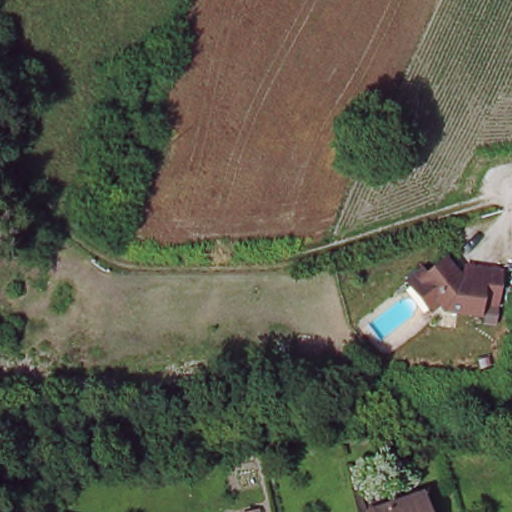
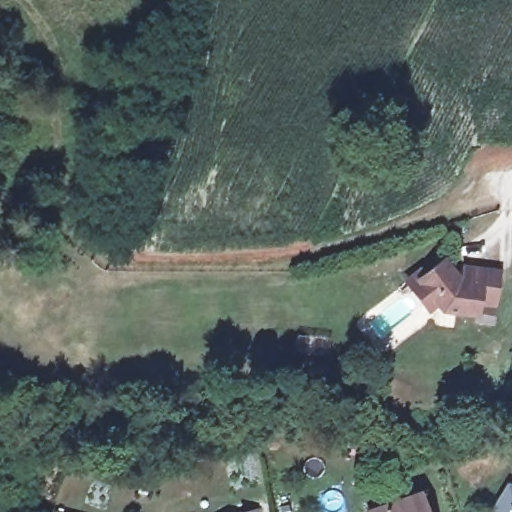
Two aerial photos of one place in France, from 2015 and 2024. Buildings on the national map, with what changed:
unchanged [(411,284),(405,275),(416,267),(423,269),(441,255),(462,280),(465,264),(498,268),(493,301),(477,299),(476,309),(442,305),(437,300),(428,307),(411,284)]
new [(492,512),(508,486),(512,488),(512,512),(492,512)]
unchanged [(418,493),(425,512),(365,512),(365,511),(418,493)]

